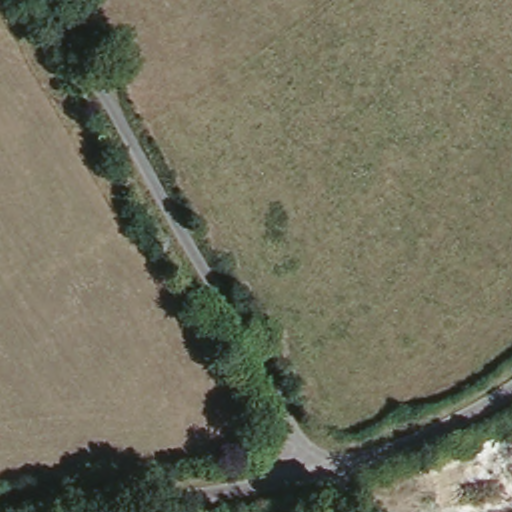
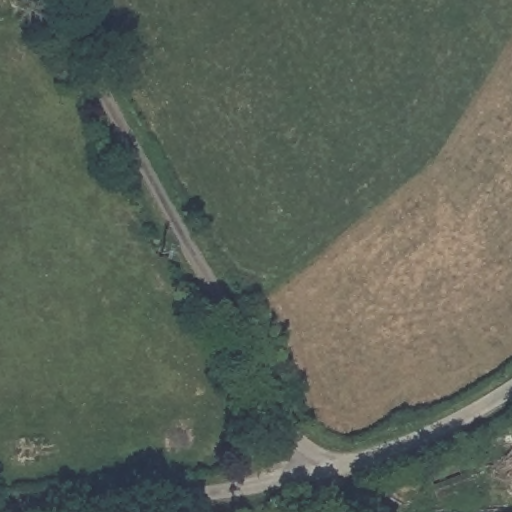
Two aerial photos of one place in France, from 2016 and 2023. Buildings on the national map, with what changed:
[]

